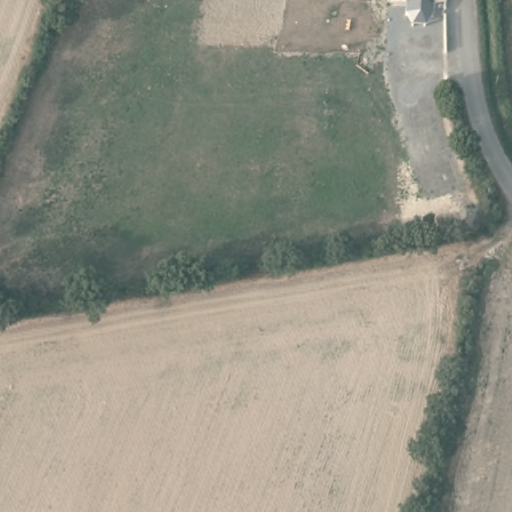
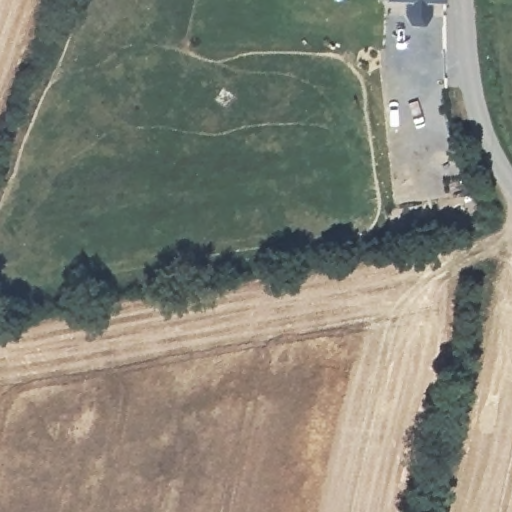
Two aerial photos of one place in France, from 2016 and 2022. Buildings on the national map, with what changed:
unchanged [(390,1),(390,0),(445,0),(446,1),(390,1)]

